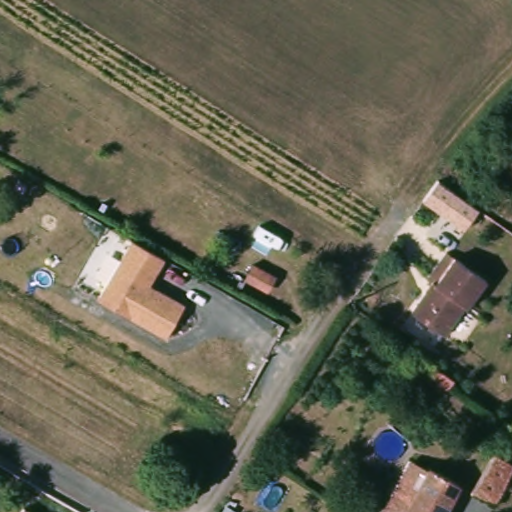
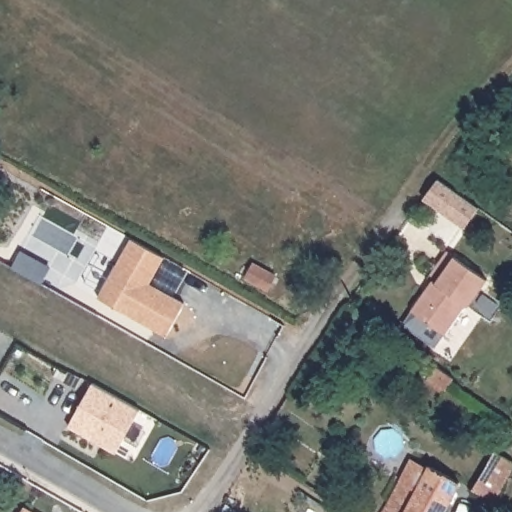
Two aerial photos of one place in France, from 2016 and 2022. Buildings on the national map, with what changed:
unchanged [(463,229),(423,202),(438,180),(476,209),(463,229)]
unchanged [(167,258),(154,283),(187,302),(165,337),(100,295),(132,238),(167,258)]
unchanged [(485,285),(464,312),(461,309),(439,338),(405,312),(421,293),(428,284),(425,282),(446,255),(485,285)]
unchanged [(242,279),(251,263),(273,276),(264,293),(242,279)]
unchanged [(419,376),(429,362),(446,374),(447,374),(437,389),(419,376)]
new [(67,428),(91,385),(139,411),(114,454),(67,428)]
unchanged [(512,463),(512,467),(492,502),(470,486),(492,449),(512,463)]
unchanged [(398,484),(415,493),(427,469),(456,484),(458,485),(444,512),(381,512),(398,484)]
unchanged [(21,509),(26,512),(20,512),(21,509)]

